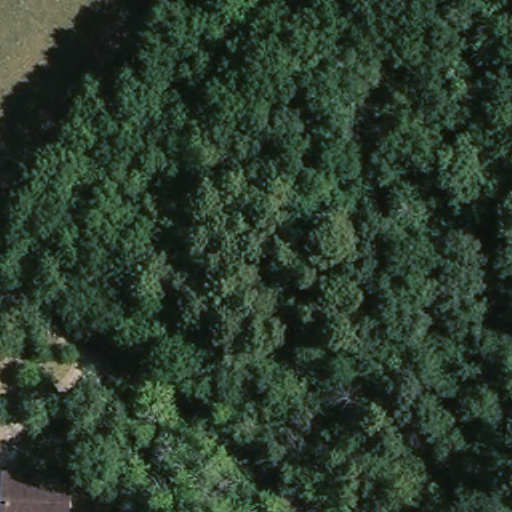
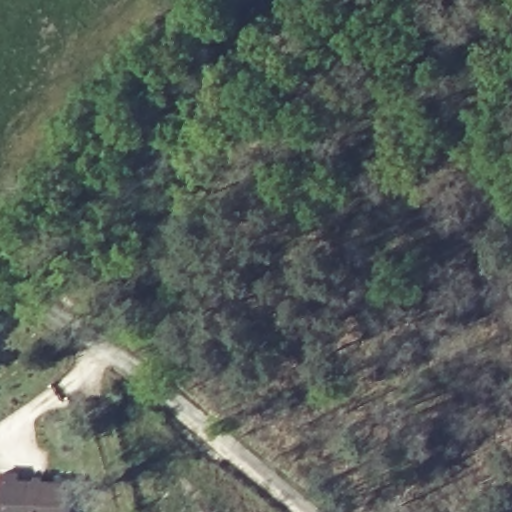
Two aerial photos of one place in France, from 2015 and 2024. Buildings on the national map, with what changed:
unchanged [(66,479),(66,512),(0,512),(0,480),(66,479)]

